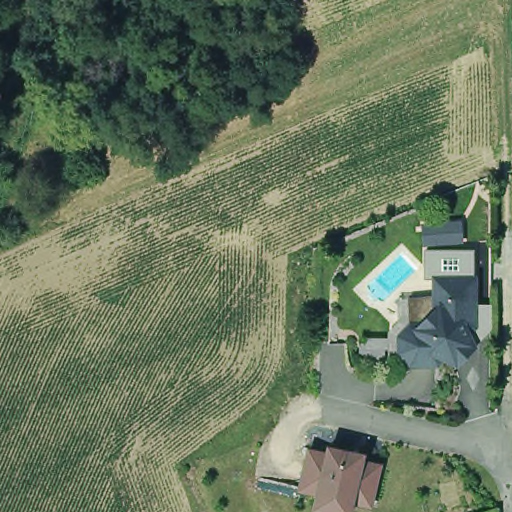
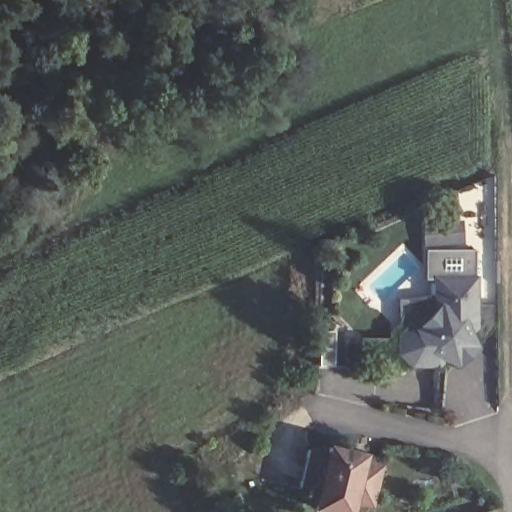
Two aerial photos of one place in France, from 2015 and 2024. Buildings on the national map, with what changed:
unchanged [(425,222),(435,221),(461,219),(462,237),(435,239),(426,239),(425,222)]
unchanged [(473,346),(473,358),(461,369),(447,362),(440,368),(415,368),(405,360),(404,344),(410,331),(425,332),(438,316),(438,284),(473,284),(474,330),(467,339),(473,346)]
unchanged [(307,448),(325,452),(327,445),(346,449),(360,451),(358,459),(377,463),(369,502),(350,498),(348,512),(345,512),(313,505),(317,491),(298,487),(307,448)]

